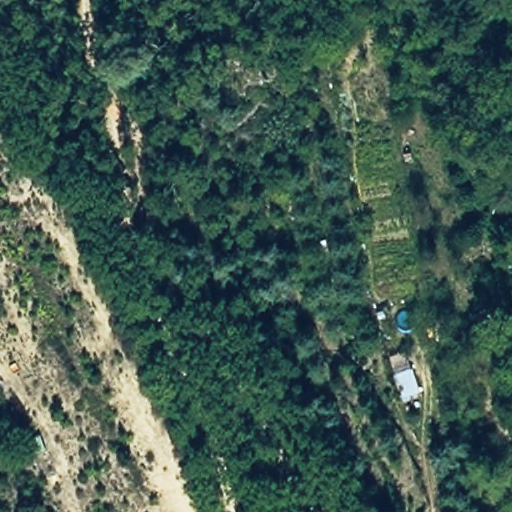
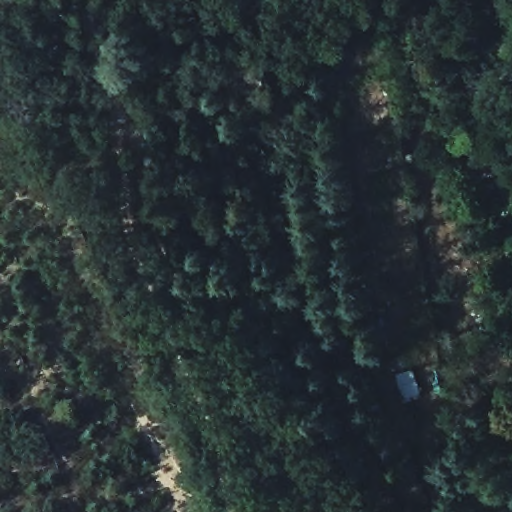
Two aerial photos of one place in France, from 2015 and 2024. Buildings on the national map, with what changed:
unchanged [(420,397),(404,400),(397,372),(413,367),(420,397)]

